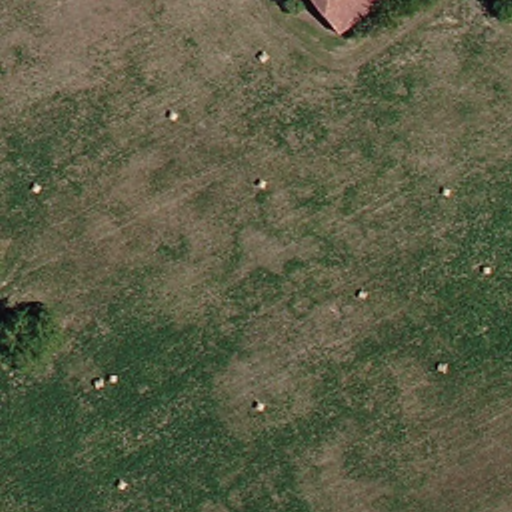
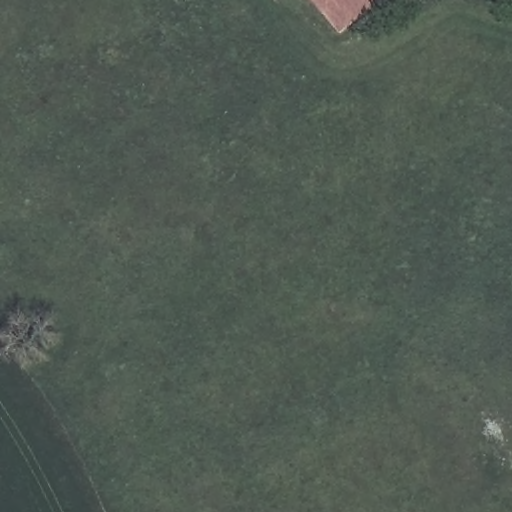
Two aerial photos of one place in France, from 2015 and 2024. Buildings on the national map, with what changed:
unchanged [(309,0),(384,0),(337,37),(309,0)]

